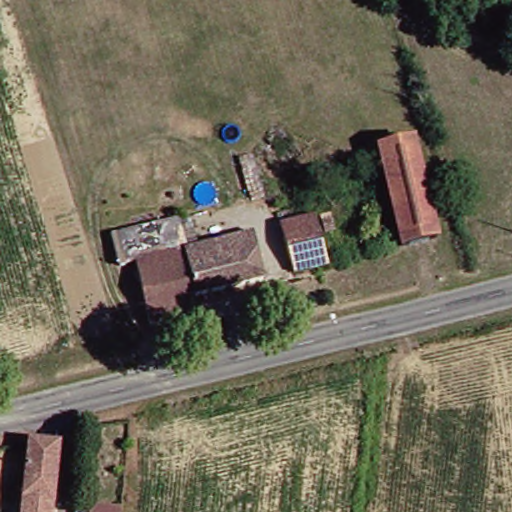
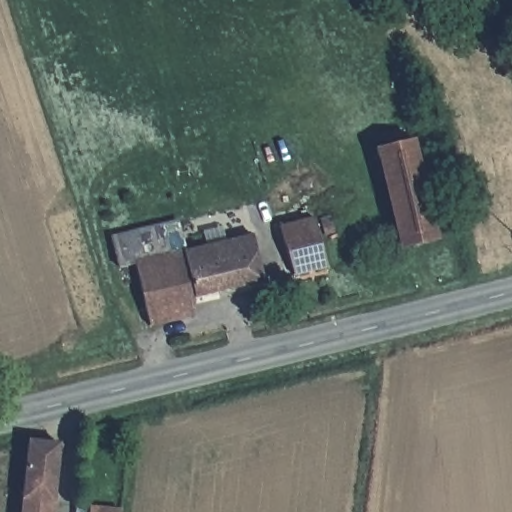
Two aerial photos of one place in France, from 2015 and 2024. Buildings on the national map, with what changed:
unchanged [(372,152),(408,143),(431,235),(395,244),(372,152)]
unchanged [(275,226),(305,217),(319,267),(288,276),(275,226)]
unchanged [(172,221),(180,249),(116,264),(110,237),(172,221)]
unchanged [(141,325),(137,307),(134,291),(124,293),(116,264),(180,249),(245,233),(260,282),(183,298),(180,317),(141,325)]
unchanged [(50,512),(19,512),(26,442),(57,447),(50,512)]
unchanged [(99,512),(87,512),(87,510),(99,512)]

